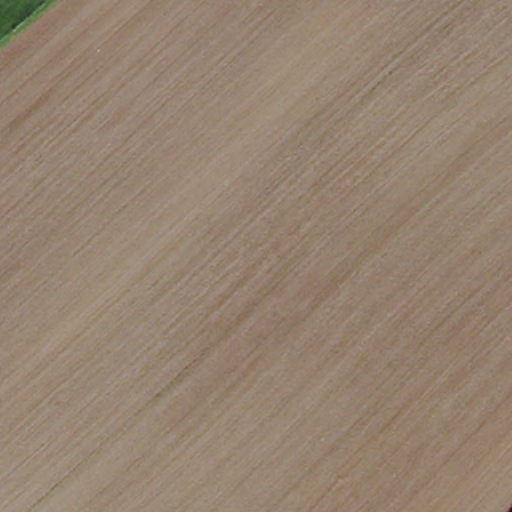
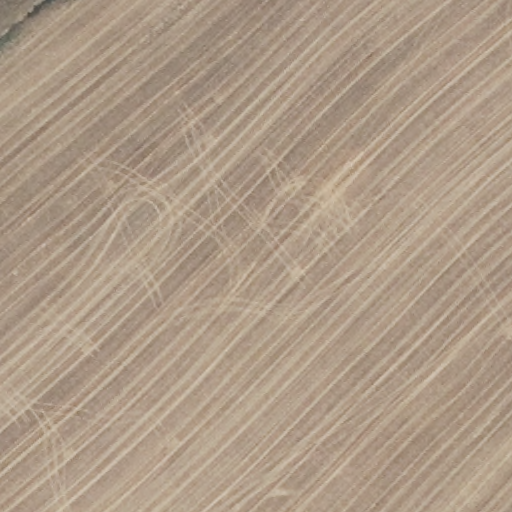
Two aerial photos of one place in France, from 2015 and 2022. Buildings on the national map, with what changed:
[]

